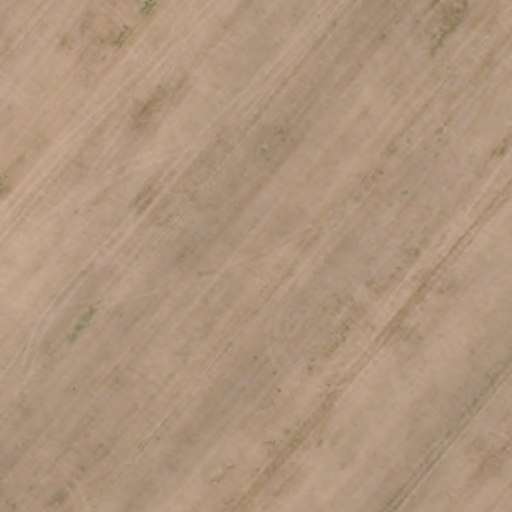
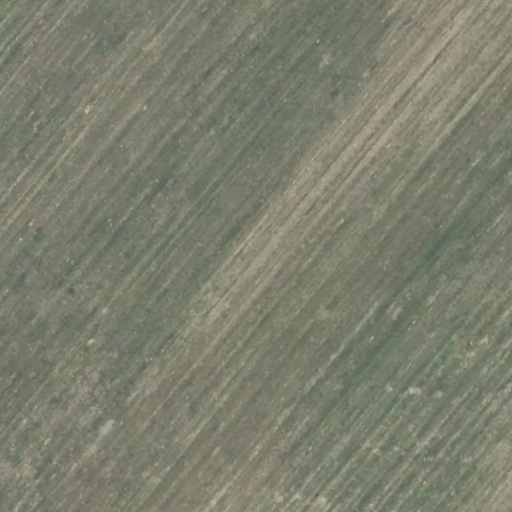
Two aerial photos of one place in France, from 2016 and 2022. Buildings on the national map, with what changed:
[]

